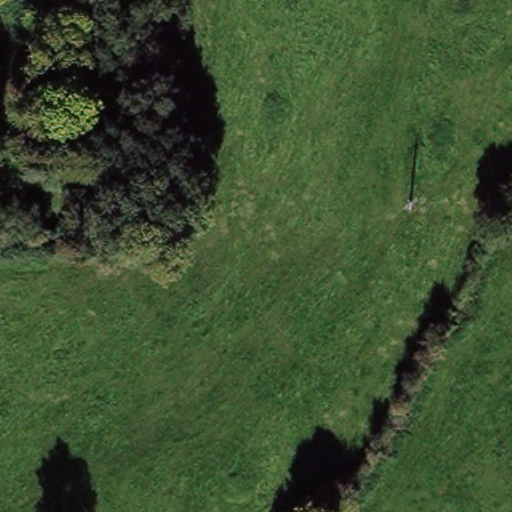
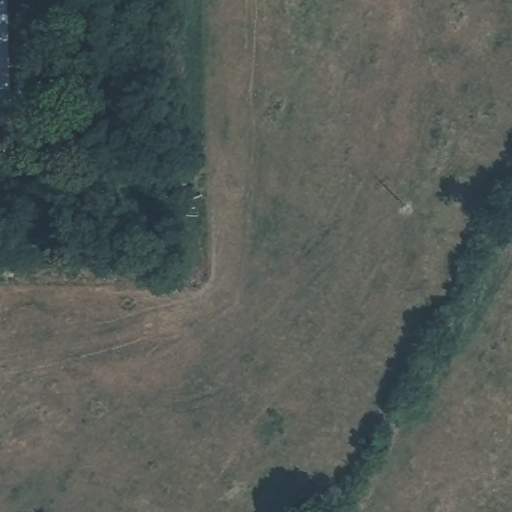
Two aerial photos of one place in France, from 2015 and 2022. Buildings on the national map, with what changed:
new [(0,90),(0,0),(9,0),(10,90),(0,90)]

